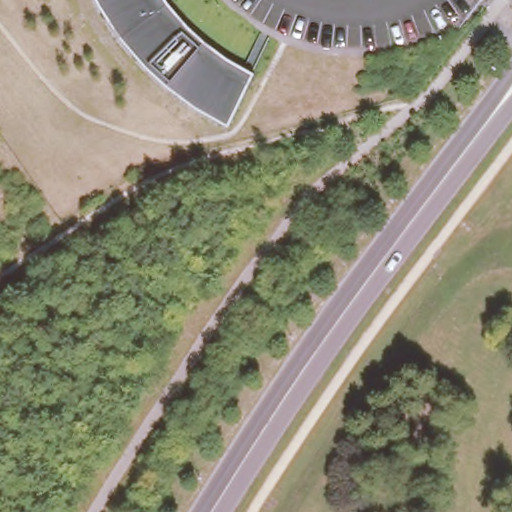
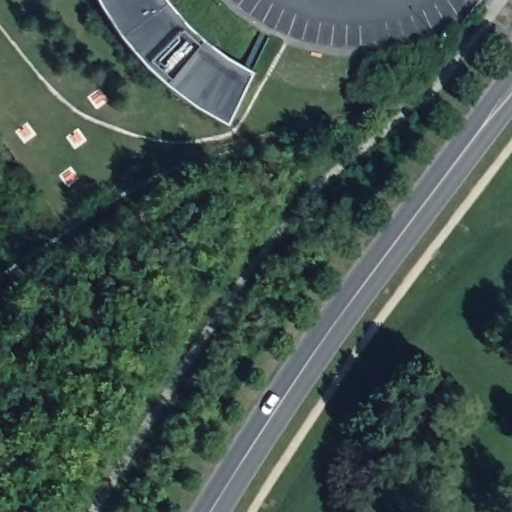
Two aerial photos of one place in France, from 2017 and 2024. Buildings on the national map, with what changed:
unchanged [(173,12),(191,33),(209,47),(230,62),(253,75),(227,130),(180,102),(152,80),(130,56),(108,27),(93,0),(163,0),(173,12)]

